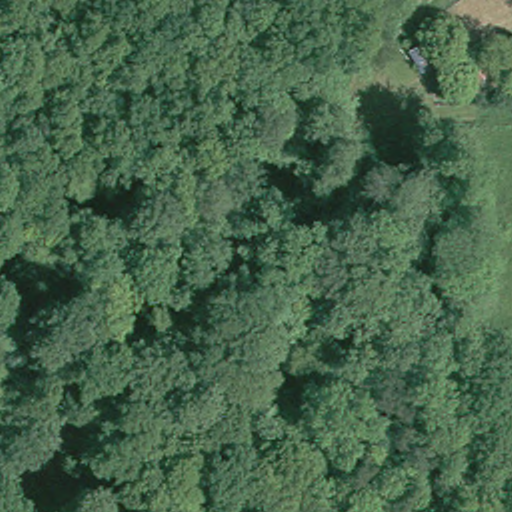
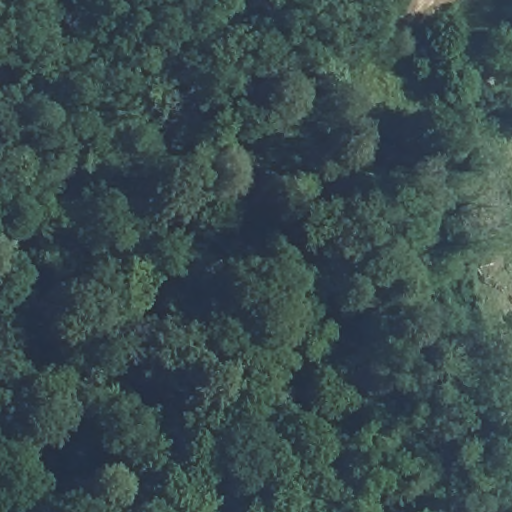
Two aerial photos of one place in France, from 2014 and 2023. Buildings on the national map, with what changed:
unchanged [(429,46),(438,67),(421,75),(410,53),(429,46)]
unchanged [(493,61),(495,82),(475,82),(473,62),(493,61)]

